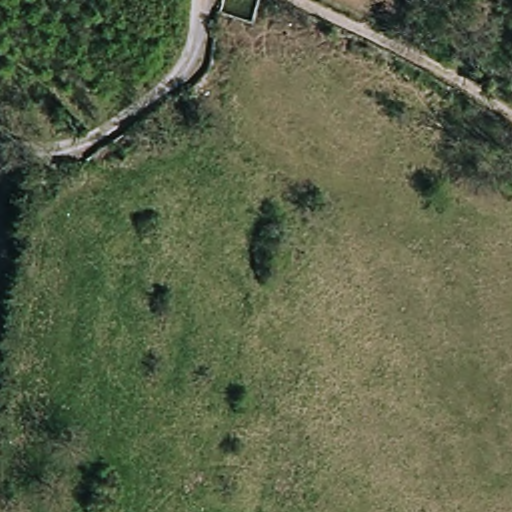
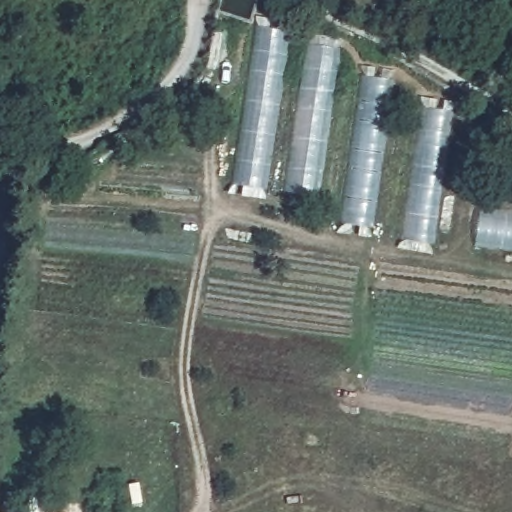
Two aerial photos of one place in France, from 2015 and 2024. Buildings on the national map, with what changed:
demolished [(212,14),(215,0),(240,0),(245,2),(240,24),(212,14)]
new [(253,29),(289,34),(266,187),(231,180),(253,29)]
new [(338,47),(317,195),(283,189),(304,41),(338,47)]
new [(360,72),(393,76),(370,224),(339,219),(360,72)]
new [(420,105),(450,109),(430,240),(399,235),(420,105)]
new [(483,201),(512,205),(512,245),(476,239),(483,201)]

